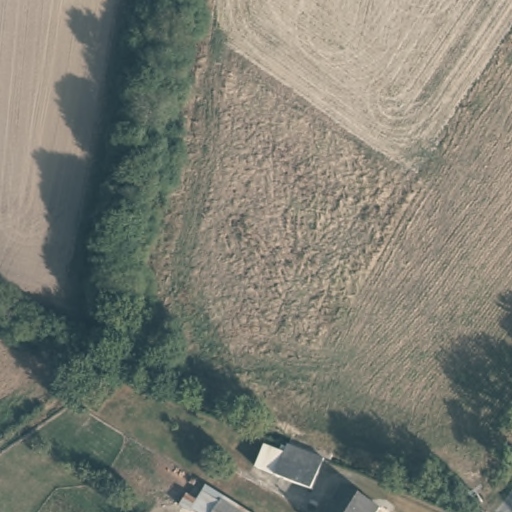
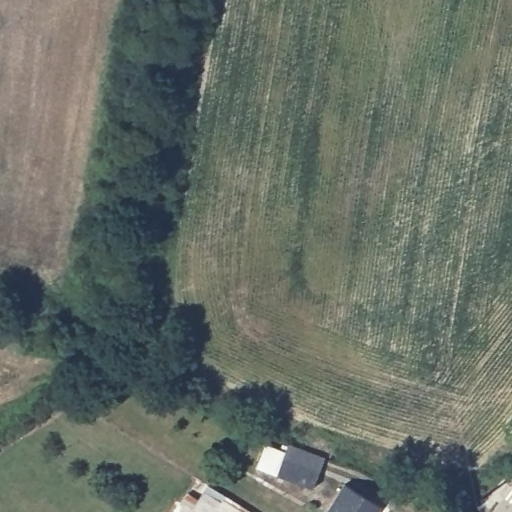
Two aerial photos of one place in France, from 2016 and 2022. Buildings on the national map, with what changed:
unchanged [(270,470),(281,440),(308,451),(316,455),(305,485),(270,470)]
unchanged [(375,512),(328,512),(348,481),(381,503),(375,512)]
unchanged [(194,508),(206,487),(214,492),(245,512),(201,512),(194,508)]

